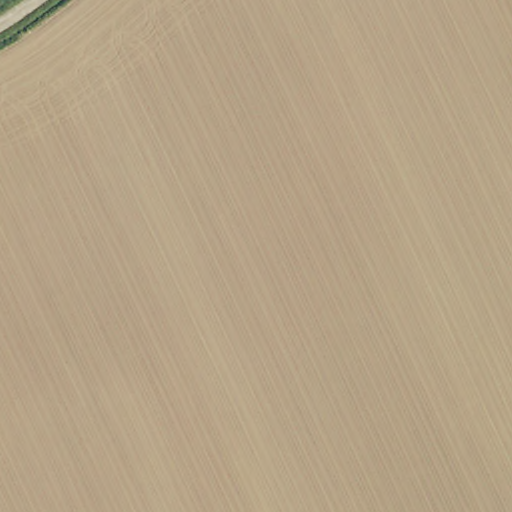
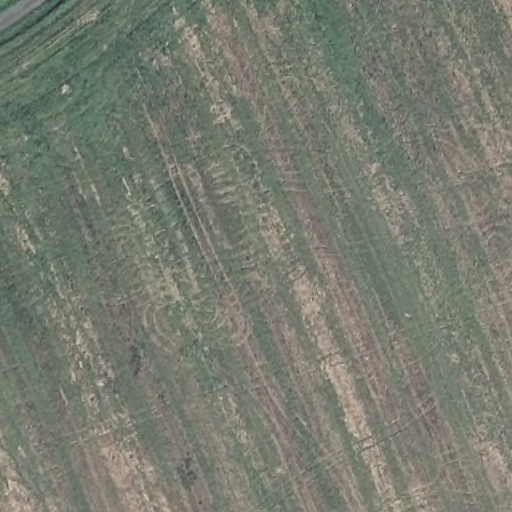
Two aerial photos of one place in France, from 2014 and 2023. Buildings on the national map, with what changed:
[]

